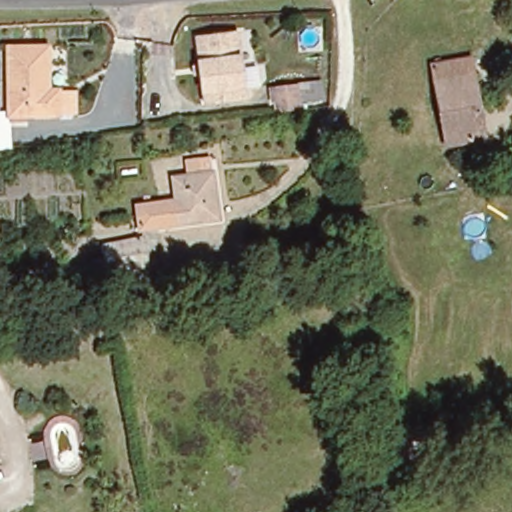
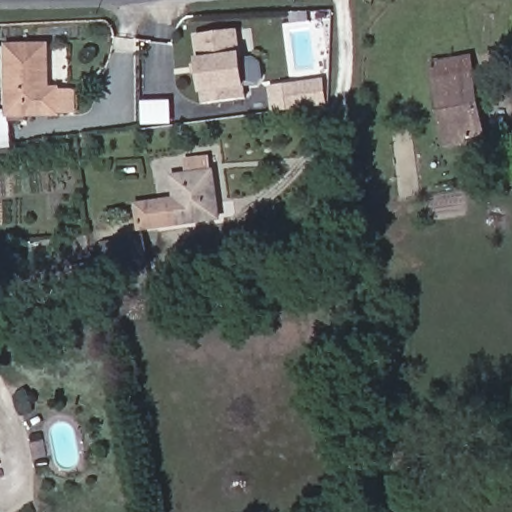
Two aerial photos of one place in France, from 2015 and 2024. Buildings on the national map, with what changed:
unchanged [(240,33),(249,101),(208,106),(198,38),(240,33)]
unchanged [(59,91),(59,115),(9,115),(9,46),(49,46),(49,91),(59,91)]
unchanged [(443,141),(428,62),(466,54),(482,133),(443,141)]
unchanged [(277,112),(274,89),(321,83),(323,98),(300,101),(301,109),(277,112)]
unchanged [(169,172),(209,167),(215,215),(135,224),(132,200),(172,195),(169,172)]
unchanged [(139,262),(142,277),(107,284),(98,240),(139,232),(145,261),(139,262)]

